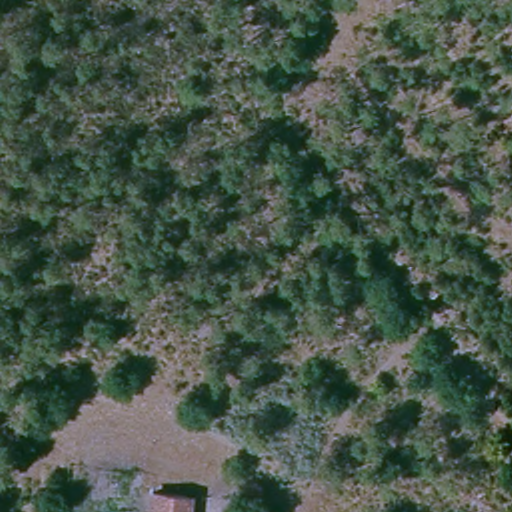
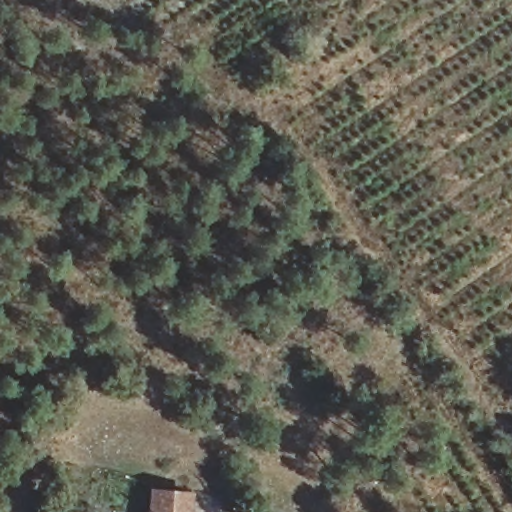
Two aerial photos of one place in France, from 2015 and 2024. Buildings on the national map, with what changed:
unchanged [(193,496),(192,512),(154,512),(155,494),(193,496)]

